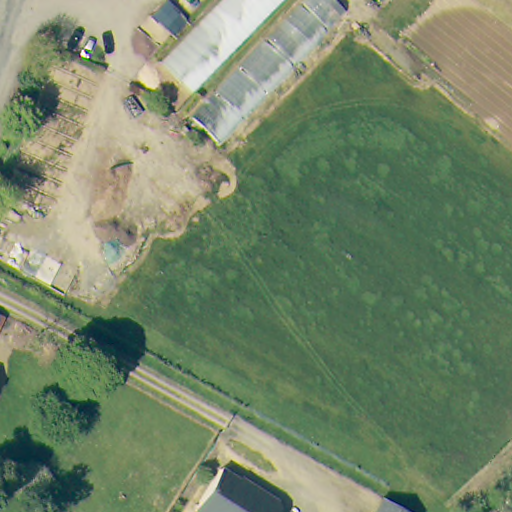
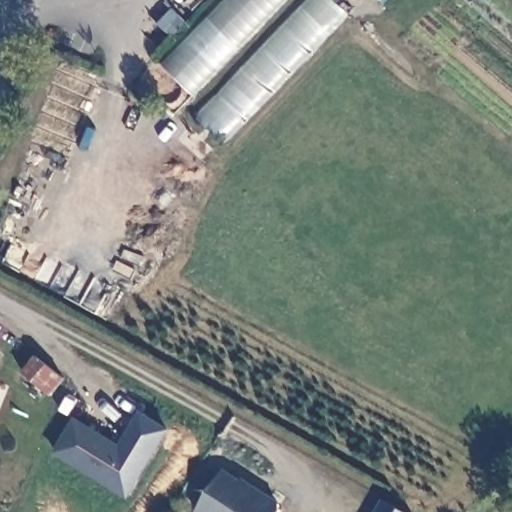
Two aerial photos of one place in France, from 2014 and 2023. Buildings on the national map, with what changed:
unchanged [(162,65),(223,0),(291,0),(194,98),(162,65)]
unchanged [(304,0),(334,0),(347,12),(223,144),(191,114),(304,0)]
unchanged [(387,0),(384,3),(380,0),(387,0)]
unchanged [(0,335),(0,324),(5,326),(0,335)]
new [(130,497),(54,453),(74,417),(120,445),(139,411),(170,429),(130,497)]
unchanged [(194,503),(220,465),(238,476),(239,475),(280,501),(273,512),(206,512),(194,503)]
unchanged [(382,495),(410,512),(372,512),(382,495)]

